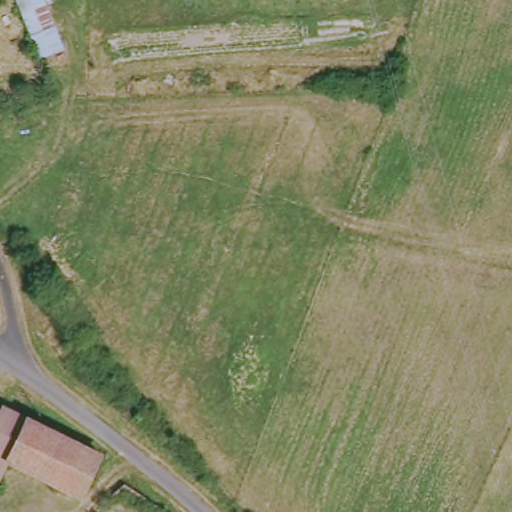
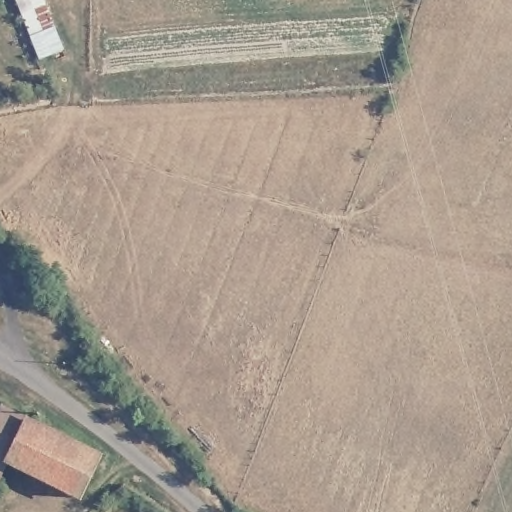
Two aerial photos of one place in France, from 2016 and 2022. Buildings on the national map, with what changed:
unchanged [(11,0),(45,0),(65,54),(35,63),(11,0)]
unchanged [(0,409),(1,407),(11,412),(99,454),(95,464),(81,494),(0,456),(0,409)]

